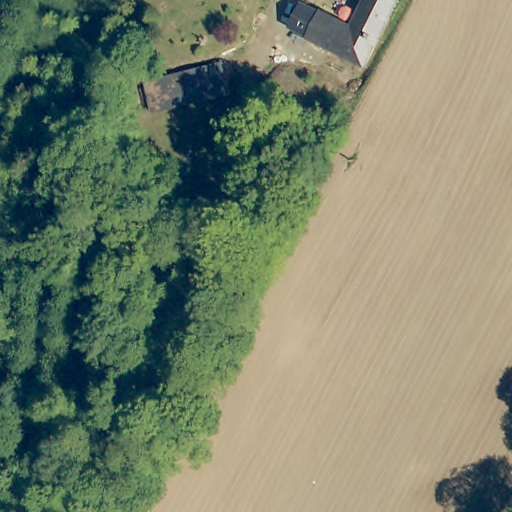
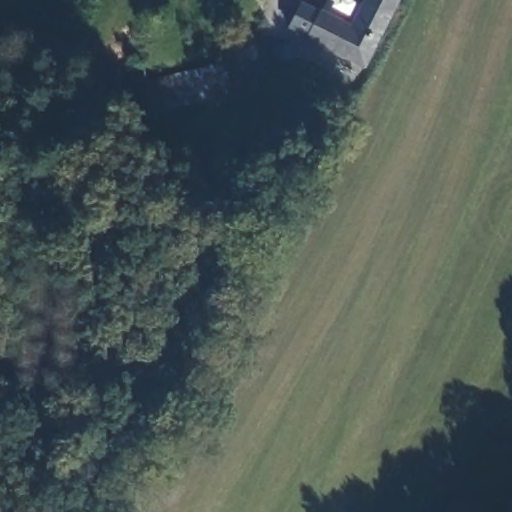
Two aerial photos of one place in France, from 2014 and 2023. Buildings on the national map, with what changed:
unchanged [(307,38),(320,12),(357,30),(372,0),(398,0),(364,67),(307,38)]
unchanged [(220,60),(229,90),(155,112),(147,82),(220,60)]

